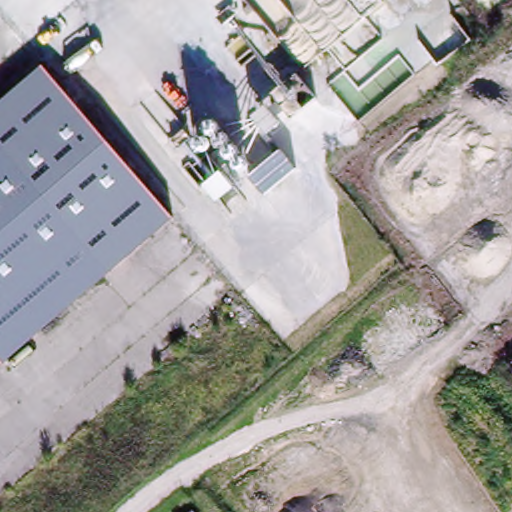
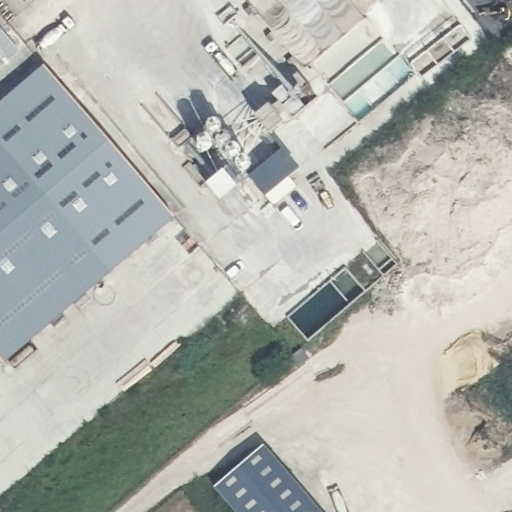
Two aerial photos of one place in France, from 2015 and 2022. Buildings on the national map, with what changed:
unchanged [(172,219),(4,365),(0,360),(0,103),(42,66),(172,219)]
new [(262,444),(319,512),(236,512),(213,485),(262,444)]

